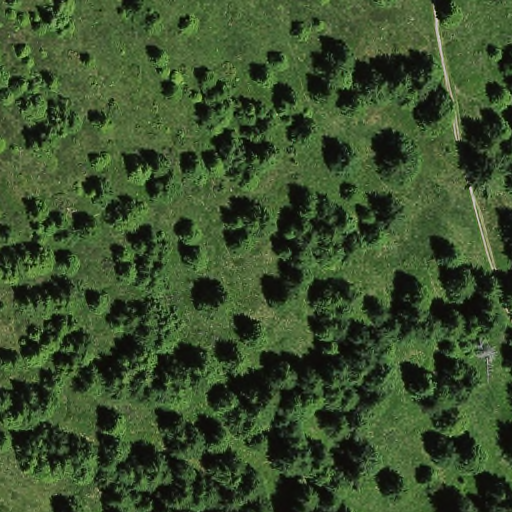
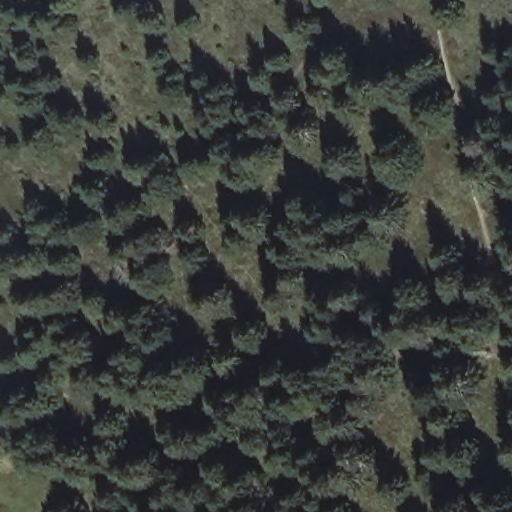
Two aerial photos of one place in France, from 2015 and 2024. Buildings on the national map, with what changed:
unchanged [(53,451),(49,449),(46,445),(45,441),(45,435),(50,429),(56,426),(62,427),(67,429),(70,433),(71,438),(70,443),(68,447),(64,451),(60,452),(53,451)]

